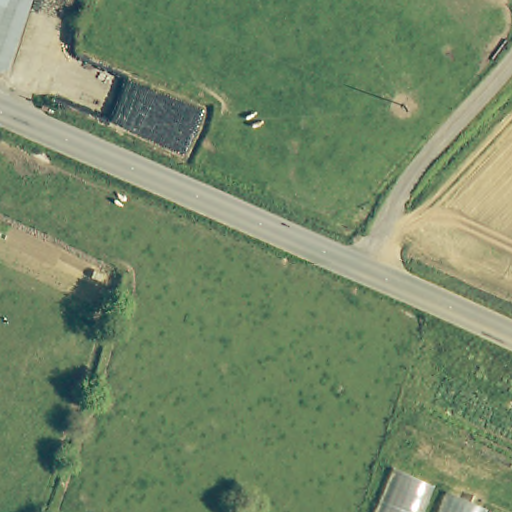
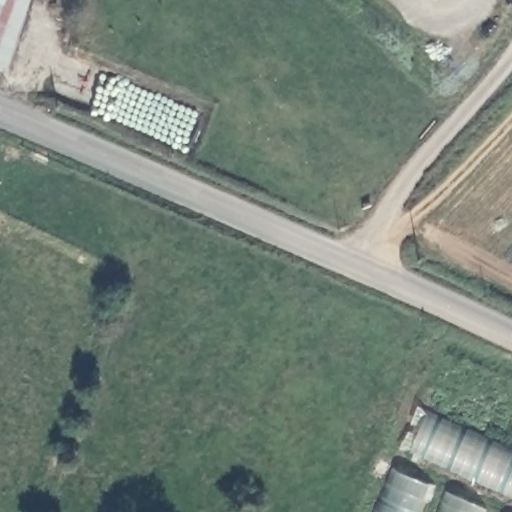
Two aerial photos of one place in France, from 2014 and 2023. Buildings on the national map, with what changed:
unchanged [(19,0),(0,56),(0,0),(19,0)]
new [(427,411),(512,450),(512,493),(411,447),(427,411)]
unchanged [(432,483),(420,512),(380,512),(397,470),(432,483)]
unchanged [(486,508),(485,512),(439,512),(447,491),(486,508)]

